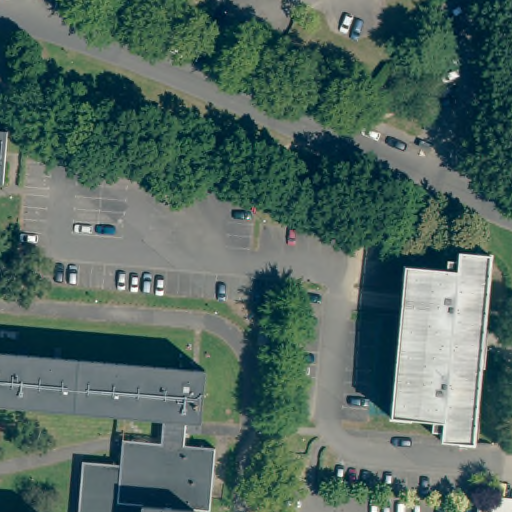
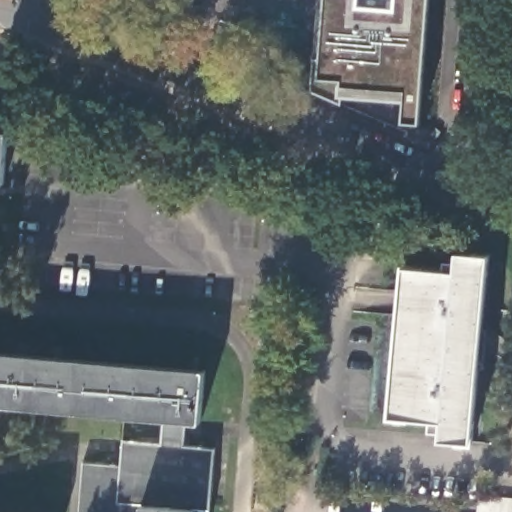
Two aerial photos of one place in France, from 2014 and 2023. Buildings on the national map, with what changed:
new [(402,121),(404,101),(343,97),(341,104),(313,91),(320,77),(325,0),(430,0),(420,124),(402,121)]
unchanged [(7,131),(4,183),(0,182),(0,130),(7,131)]
unchanged [(488,254),(472,440),(440,437),(442,420),(390,415),(404,264),(454,268),(455,251),(455,250),(488,254)]
unchanged [(84,463),(84,461),(135,466),(137,441),(163,443),(165,419),(0,404),(0,352),(207,371),(203,422),(188,421),(186,445),(217,448),(211,511),(195,510),(194,512),(79,512),(84,463)]
unchanged [(512,499),(512,512),(478,512),(480,496),(512,499)]
unchanged [(15,512),(0,512),(0,511),(15,512)]
unchanged [(25,511),(34,512),(25,512),(25,511)]

